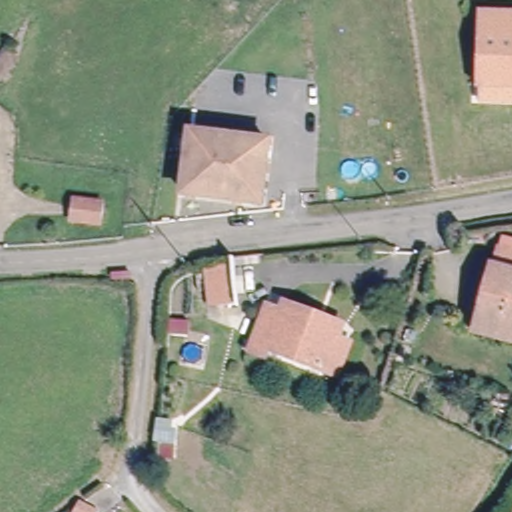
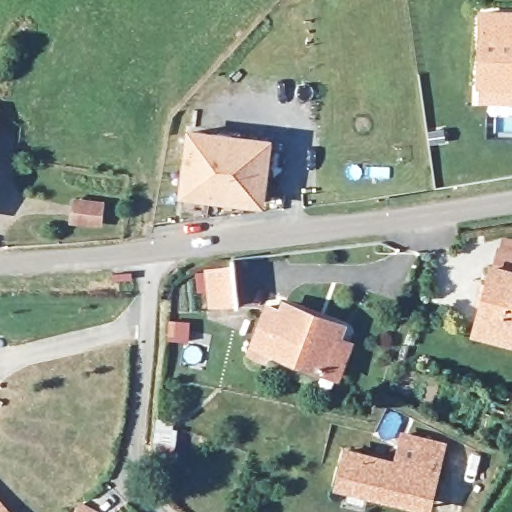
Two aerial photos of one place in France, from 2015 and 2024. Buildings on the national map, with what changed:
unchanged [(480,100),(481,85),(480,85),(482,12),(512,13),(512,101),(480,100)]
unchanged [(269,141),(261,203),(184,193),(191,131),(269,141)]
unchanged [(105,204),(102,223),(73,220),(76,201),(105,204)]
unchanged [(471,332),(472,324),(487,266),(490,266),(495,249),(512,254),(512,343),(471,332)]
unchanged [(209,267),(236,265),(240,305),(212,307),(209,267)]
unchanged [(327,370),(270,348),(267,358),(250,351),(267,306),(282,312),(285,305),(303,311),(326,320),(343,327),(338,339),(351,343),(338,375),(327,370)]
new [(447,442),(431,510),(336,487),(345,445),(396,457),(403,429),(447,442)]
new [(0,512),(0,497),(13,512),(0,512)]
unchanged [(79,498),(95,507),(92,512),(66,512),(72,503),(79,498)]

